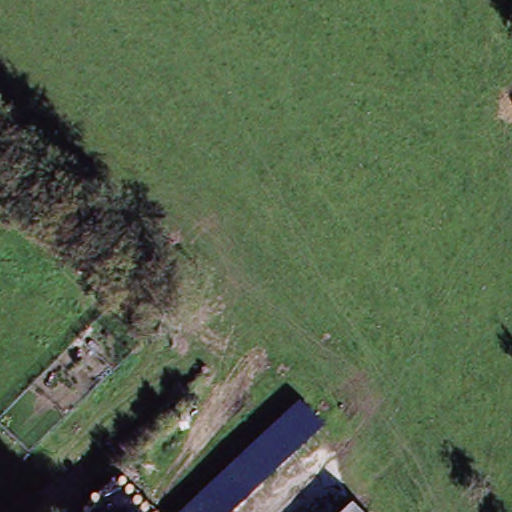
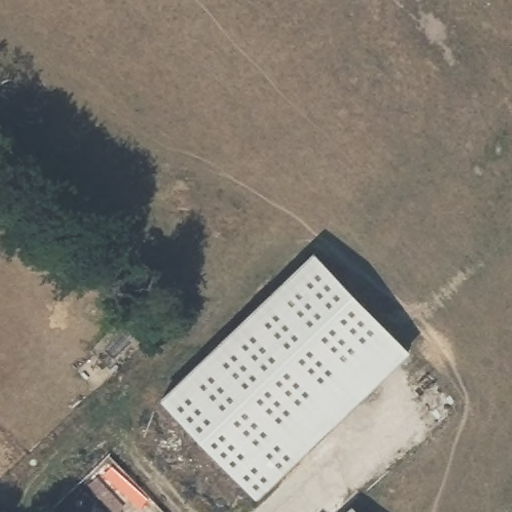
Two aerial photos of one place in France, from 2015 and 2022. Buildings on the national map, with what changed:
new [(409,353),(256,501),(160,400),(312,252),(409,353)]
demolished [(236,512),(197,512),(195,510),(290,407),(315,430),(236,512)]
unchanged [(345,512),(350,507),(354,512),(345,512)]

